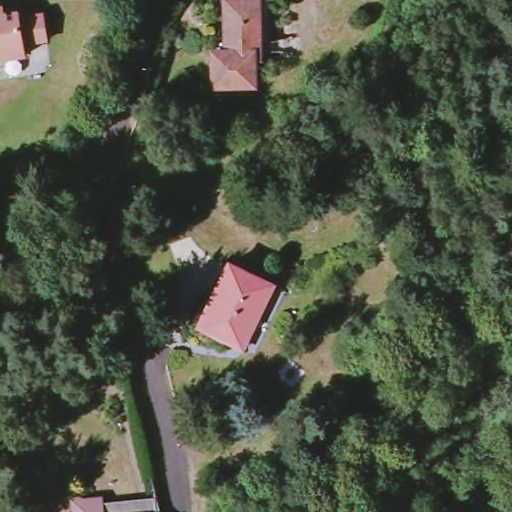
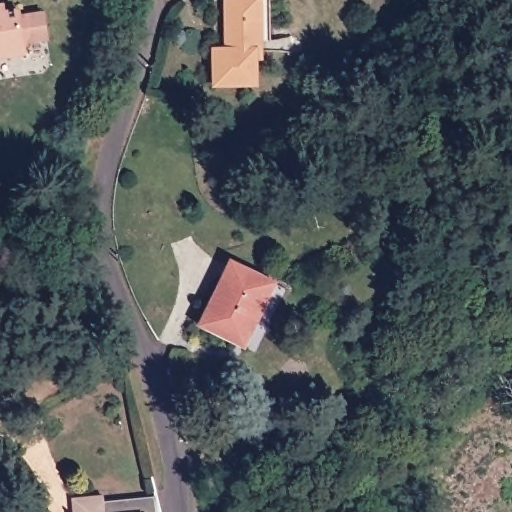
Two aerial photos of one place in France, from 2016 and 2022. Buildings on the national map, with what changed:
unchanged [(217,54),(230,53),(227,2),(259,0),(262,59),(258,59),(260,86),(220,88),(217,54)]
unchanged [(5,15),(20,12),(20,18),(44,14),(48,40),(30,43),(25,48),(27,56),(0,60),(0,8),(3,7),(5,15)]
unchanged [(225,339),(194,320),(229,261),(270,284),(239,338),(235,345),(225,339)]
unchanged [(70,507),(85,505),(85,500),(100,498),(100,503),(152,497),(154,512),(71,512),(70,507)]

